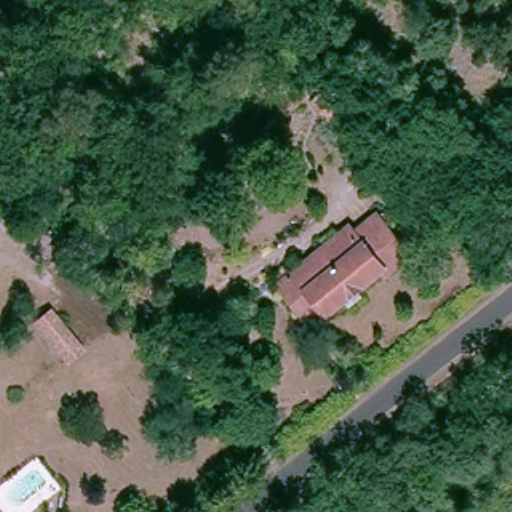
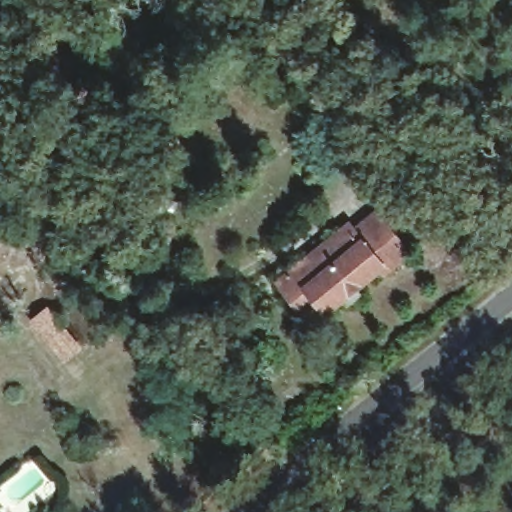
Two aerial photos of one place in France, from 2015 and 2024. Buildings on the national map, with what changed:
unchanged [(163,122),(152,130),(133,110),(144,99),(163,122)]
unchanged [(182,166),(173,175),(157,155),(164,145),(182,166)]
unchanged [(365,239),(294,302),(279,283),(340,232),(347,241),(376,216),(408,255),(391,270),(365,239)]
unchanged [(495,239),(512,224),(512,248),(508,252),(495,239)]
unchanged [(386,273),(381,266),(327,311),(321,305),(307,317),(294,302),(365,239),(391,270),(386,273)]
unchanged [(48,308),(80,347),(64,362),(32,322),(48,308)]

